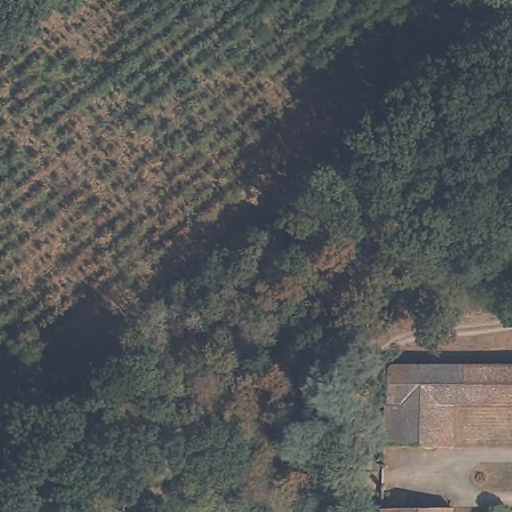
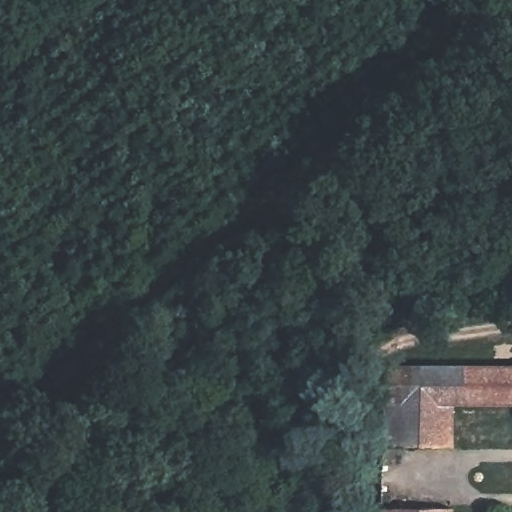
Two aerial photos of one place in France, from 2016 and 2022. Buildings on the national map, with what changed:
unchanged [(512,363),(512,405),(453,405),(453,447),(383,446),(383,371),(389,365),(512,363)]
unchanged [(447,511),(447,512),(376,512),(447,511)]

